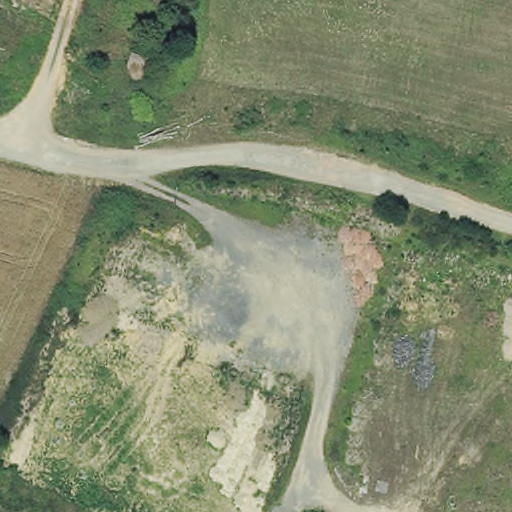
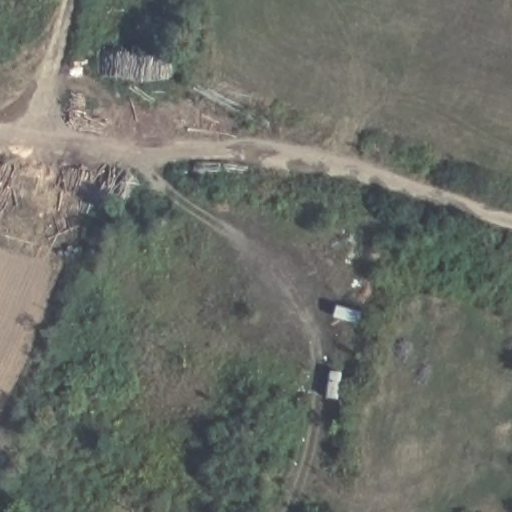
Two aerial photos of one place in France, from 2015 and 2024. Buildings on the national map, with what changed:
unchanged [(141,78),(118,71),(129,48),(152,55),(141,78)]

